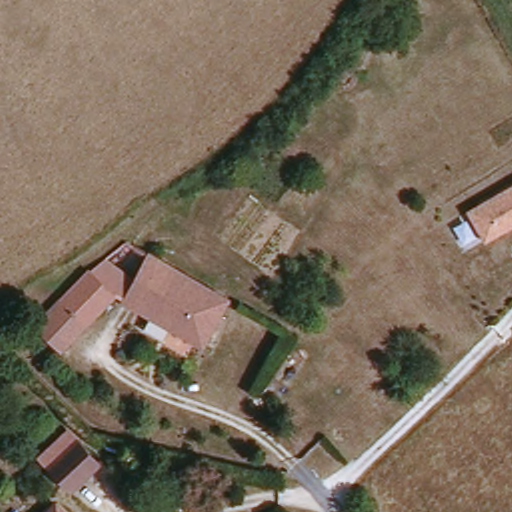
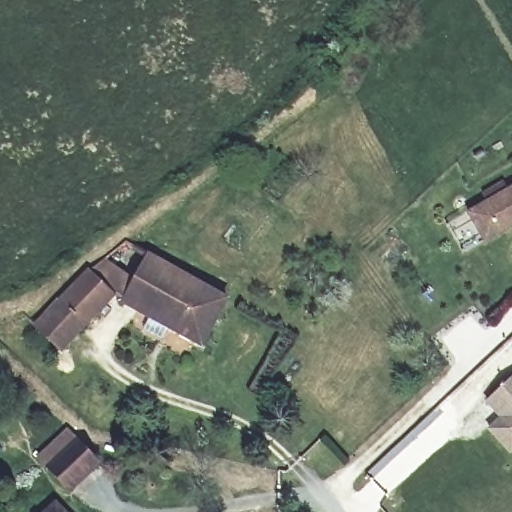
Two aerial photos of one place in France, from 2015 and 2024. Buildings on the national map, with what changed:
unchanged [(470,212),(483,205),(512,189),(512,228),(500,234),(486,242),(470,212)]
unchanged [(137,245),(145,252),(120,301),(63,349),(40,323),(49,314),(101,268),(137,245)]
unchanged [(152,255),(239,300),(215,346),(129,301),(152,255)]
new [(511,452),(489,430),(502,418),(487,401),(512,379),(512,452),(511,452)]
unchanged [(56,463),(63,457),(84,438),(106,464),(86,482),(79,488),(56,463)]
unchanged [(69,512),(55,512),(62,505),(69,512)]

